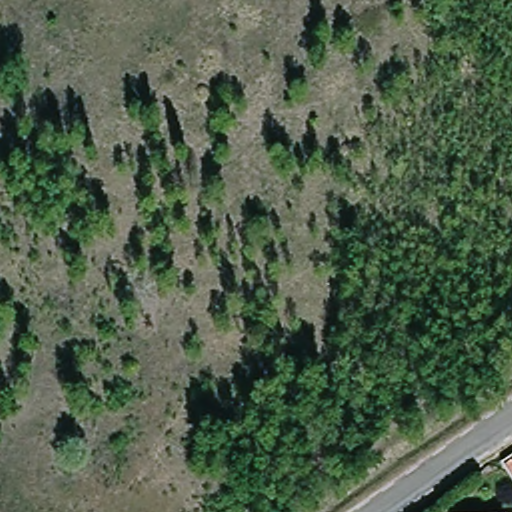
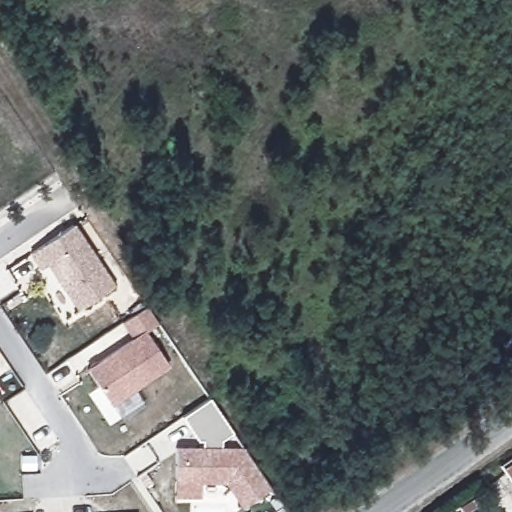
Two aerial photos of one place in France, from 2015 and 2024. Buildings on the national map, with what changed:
new [(68,239),(109,301),(75,325),(43,277),(36,282),(26,268),(68,239)]
new [(145,331),(169,367),(111,407),(86,369),(131,339),(122,325),(145,307),(156,323),(145,331)]
new [(200,457),(195,457),(178,433),(206,414),(230,450),(241,465),(268,506),(258,512),(232,512),(223,498),(198,498),(198,512),(173,512),(173,497),(173,464),(200,465),(200,457)]

